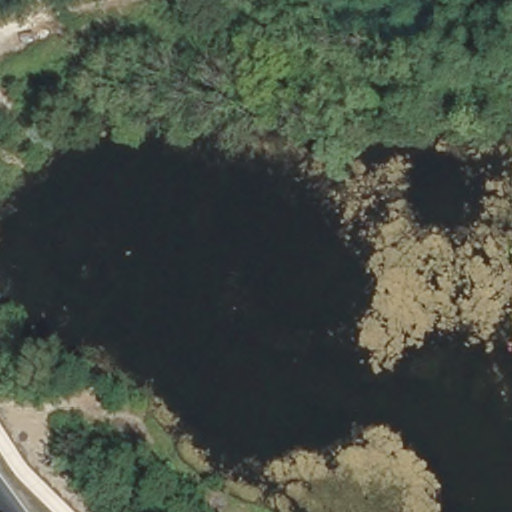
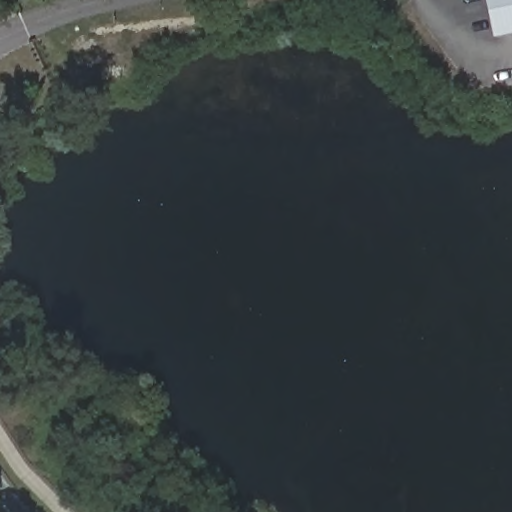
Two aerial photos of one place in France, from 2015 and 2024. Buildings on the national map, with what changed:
unchanged [(224,11),(222,0),(241,0),(243,7),(224,11)]
new [(484,0),(512,0),(512,34),(493,38),(484,0)]

